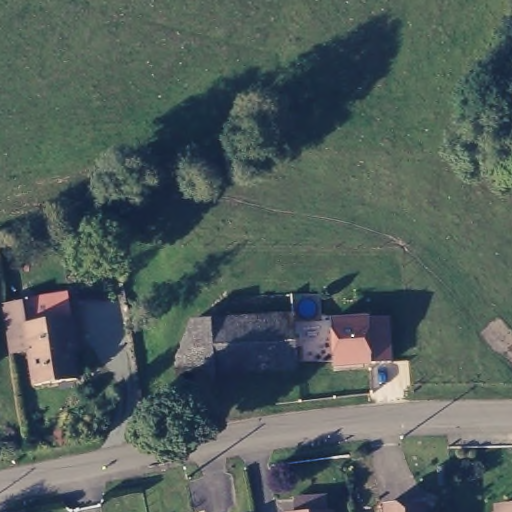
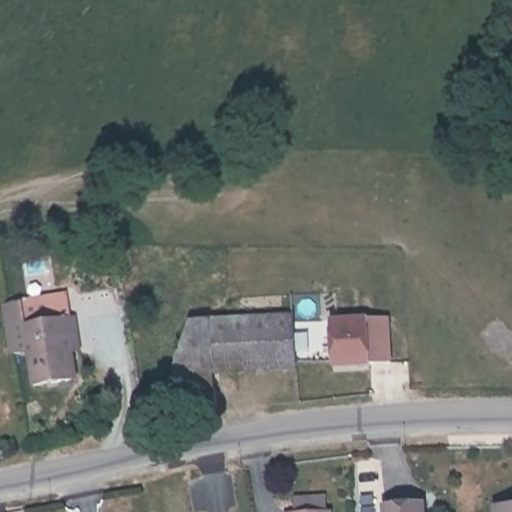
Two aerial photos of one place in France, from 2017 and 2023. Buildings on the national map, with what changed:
unchanged [(189,415),(183,357),(185,323),(231,320),(229,302),(294,295),(302,366),(221,375),(226,409),(189,415)]
unchanged [(73,297),(74,321),(83,320),(85,346),(75,347),(79,381),(33,386),(28,353),(13,355),(7,305),(21,304),(36,302),(73,297)]
unchanged [(314,370),(309,323),(378,315),(384,364),(314,370)]
unchanged [(295,502),(326,501),(326,512),(295,512),(295,502)]
unchanged [(386,510),(426,510),(426,512),(386,512),(386,510)]

